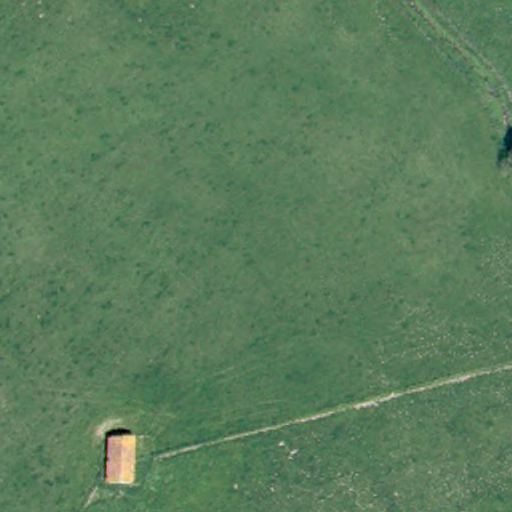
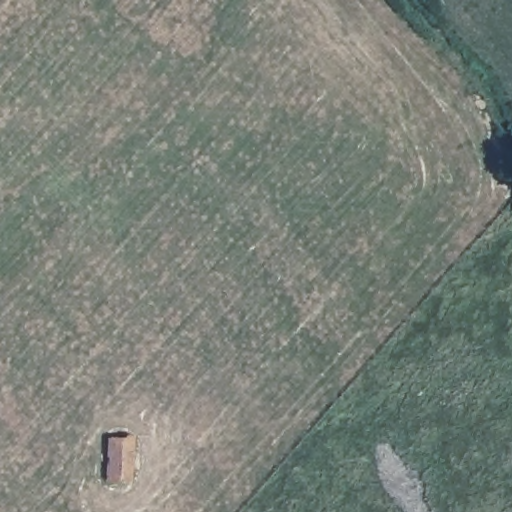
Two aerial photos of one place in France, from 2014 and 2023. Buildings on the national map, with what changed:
unchanged [(130,483),(107,482),(110,437),(133,439),(130,483)]

